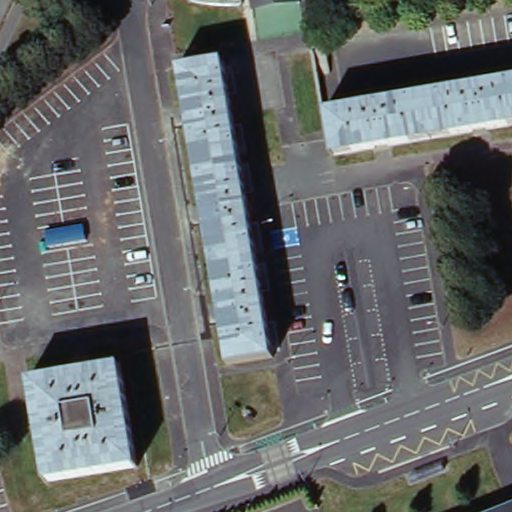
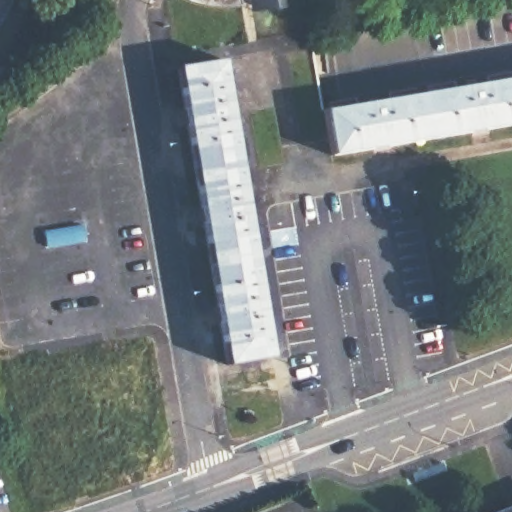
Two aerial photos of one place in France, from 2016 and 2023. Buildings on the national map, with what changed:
unchanged [(249,5),(242,6),(236,7),(228,7),(217,7),(211,6),(207,6),(201,5),(197,2),(198,0),(247,0),(249,5)]
unchanged [(257,6),(256,0),(295,0),(257,6)]
unchanged [(180,70),(227,62),(277,358),(231,366),(180,70)]
unchanged [(337,111),(512,82),(512,129),(345,158),(337,111)]
demolished [(124,366),(141,467),(50,483),(32,381),(124,366)]
unchanged [(417,471),(418,477),(385,488),(383,482),(417,471)]
unchanged [(505,512),(512,509),(512,512),(505,512)]

